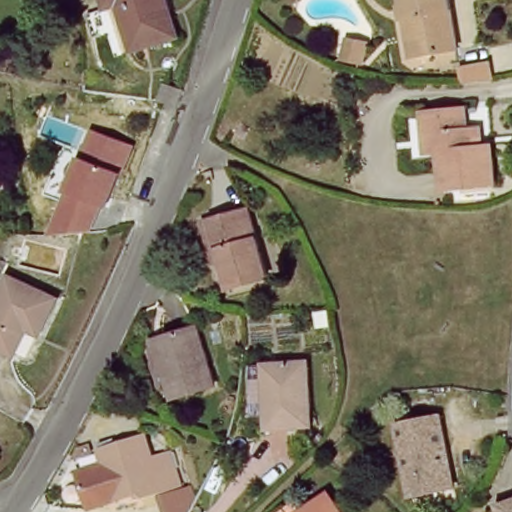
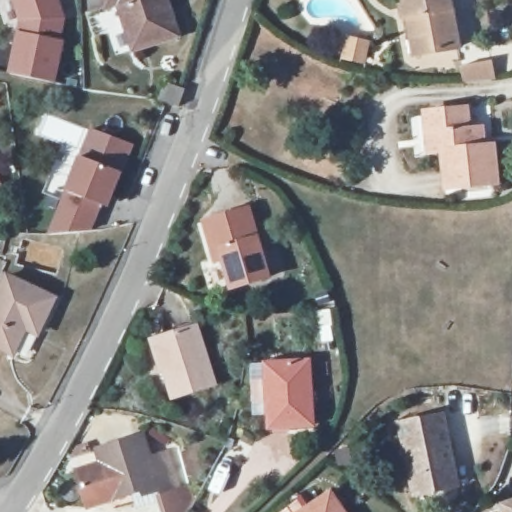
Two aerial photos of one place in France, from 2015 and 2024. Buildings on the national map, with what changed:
new [(53,41),(57,41),(49,82),(4,74),(12,33),(15,20),(8,0),(51,0),(57,19),(53,41)]
unchanged [(104,10),(102,0),(165,0),(177,39),(132,51),(118,6),(104,10)]
unchanged [(405,0),(452,0),(460,48),(433,53),(415,56),(413,41),(405,0)]
unchanged [(371,45),(365,70),(339,64),(346,40),(371,45)]
unchanged [(176,86),(187,91),(183,105),(170,101),(176,86)]
unchanged [(459,114),(461,133),(475,131),(477,151),(489,150),(492,186),(440,192),(436,156),(421,158),(419,142),(416,116),(459,114)]
unchanged [(123,173),(111,208),(103,205),(95,233),(49,236),(66,193),(79,157),(91,130),(134,146),(123,173)]
unchanged [(0,186),(0,182),(2,185),(0,186)]
demolished [(0,193),(0,182),(5,191),(0,193)]
unchanged [(227,258),(218,260),(217,251),(212,252),(205,223),(254,211),(272,277),(235,287),(227,258)]
unchanged [(35,330),(19,325),(8,355),(0,351),(0,277),(49,295),(35,330)]
unchanged [(159,340),(191,332),(205,389),(174,398),(159,340)]
unchanged [(312,427),(266,430),(262,365),(308,362),(312,427)]
unchanged [(397,419),(437,413),(450,486),(409,492),(397,419)]
unchanged [(98,467),(94,453),(141,441),(146,459),(167,455),(176,495),(156,500),(155,493),(137,498),(135,491),(106,499),(98,467)]
unchanged [(84,512),(83,512),(73,474),(98,467),(106,499),(135,491),(137,498),(84,512)]
unchanged [(332,489),(347,512),(299,512),(332,489)]
unchanged [(499,504),(512,499),(512,512),(502,512),(499,504)]

